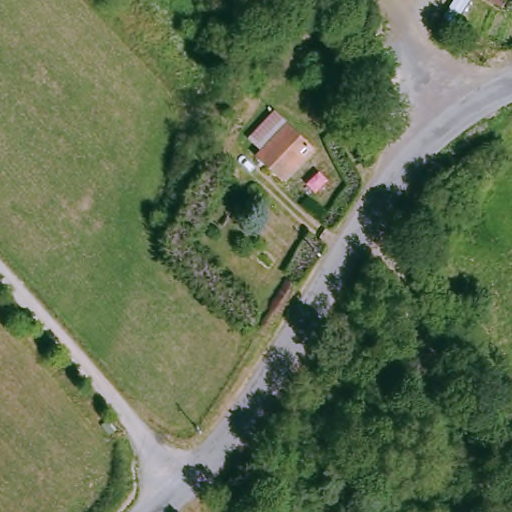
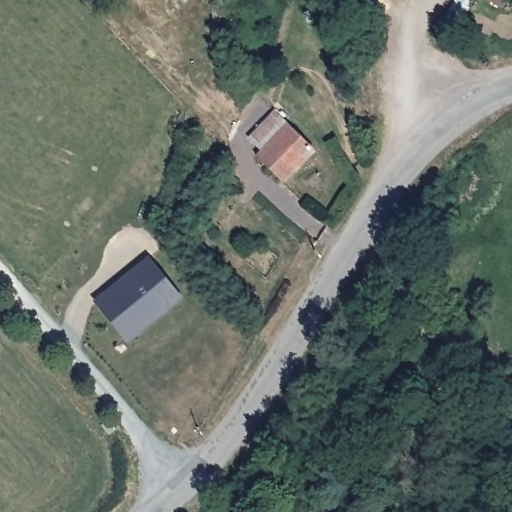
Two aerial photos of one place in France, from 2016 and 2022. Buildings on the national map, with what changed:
unchanged [(483,0),(504,0),(499,10),(483,0)]
unchanged [(309,148),(277,180),(250,152),(261,143),(254,136),(276,117),(309,148)]
new [(93,301),(148,256),(183,298),(128,342),(93,301)]

